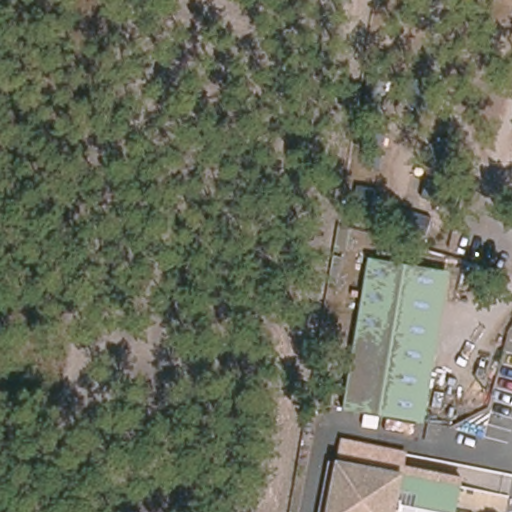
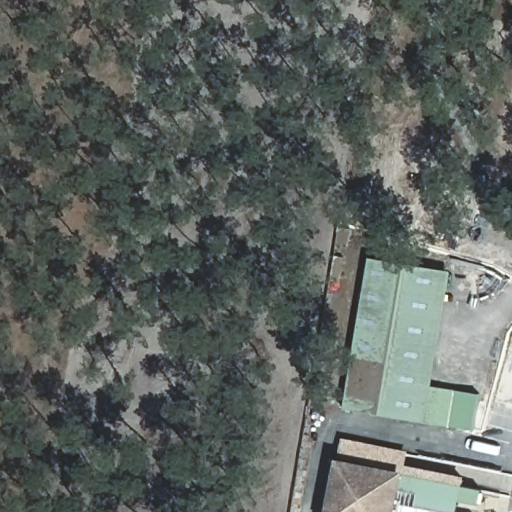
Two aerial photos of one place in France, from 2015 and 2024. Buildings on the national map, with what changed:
unchanged [(426,420),(348,412),(372,258),(446,268),(426,420)]
unchanged [(327,462),(329,450),(357,452),(355,470),(404,478),(400,503),(398,512),(320,512),(327,462)]
unchanged [(414,505),(419,480),(468,491),(464,512),(398,512),(400,503),(414,505)]

